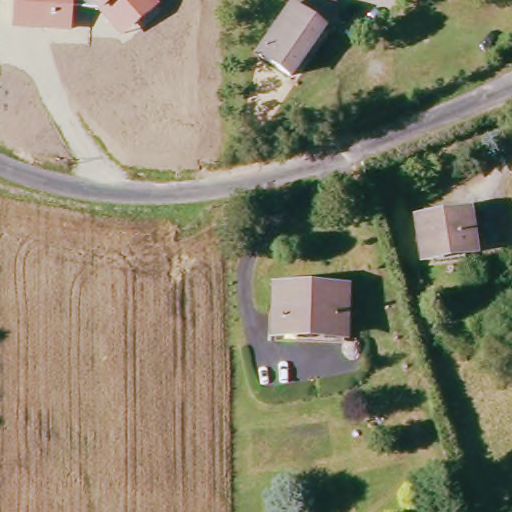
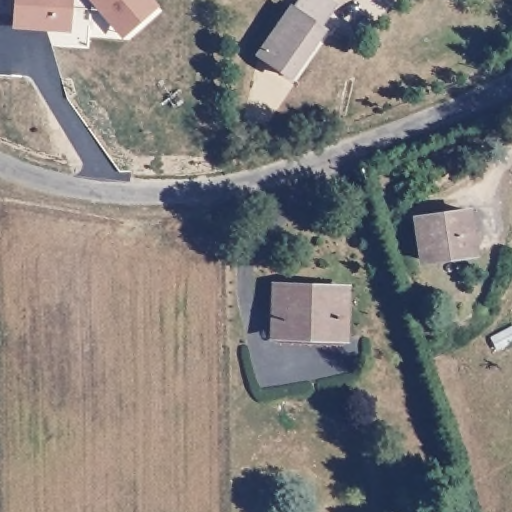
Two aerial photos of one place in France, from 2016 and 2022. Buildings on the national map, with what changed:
unchanged [(160,9),(123,40),(101,15),(97,10),(74,9),(72,34),(13,29),(15,0),(152,0),(160,9)]
unchanged [(257,58),(295,0),(322,0),(332,7),(317,32),(320,35),(288,80),(257,58)]
unchanged [(416,265),(412,222),(465,215),(470,256),(416,265)]
unchanged [(276,339),(277,293),(337,295),(335,340),(276,339)]
unchanged [(486,340),(507,333),(512,343),(512,345),(490,353),(486,340)]

